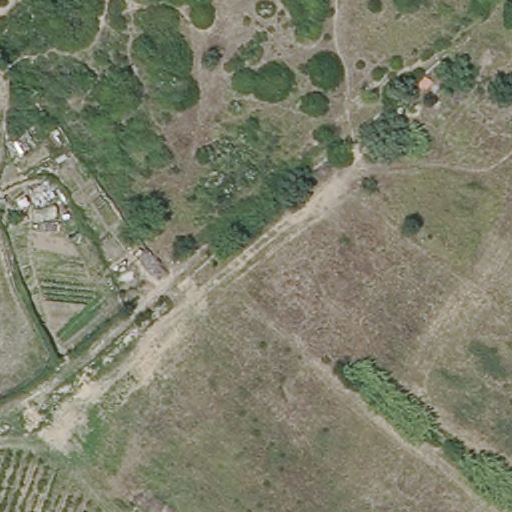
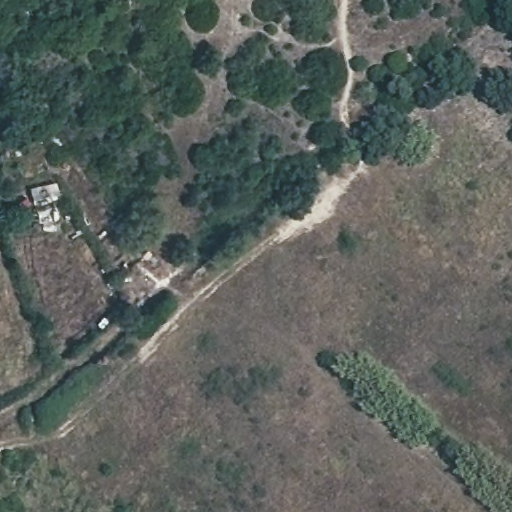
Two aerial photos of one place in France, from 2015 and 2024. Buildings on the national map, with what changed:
unchanged [(38,182),(61,214),(49,222),(34,202),(11,217),(5,205),(38,182)]

